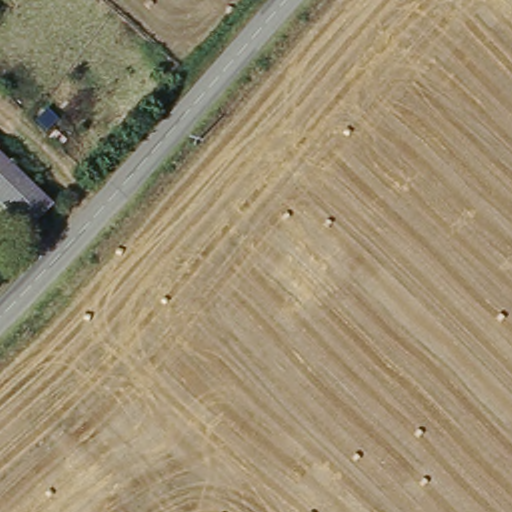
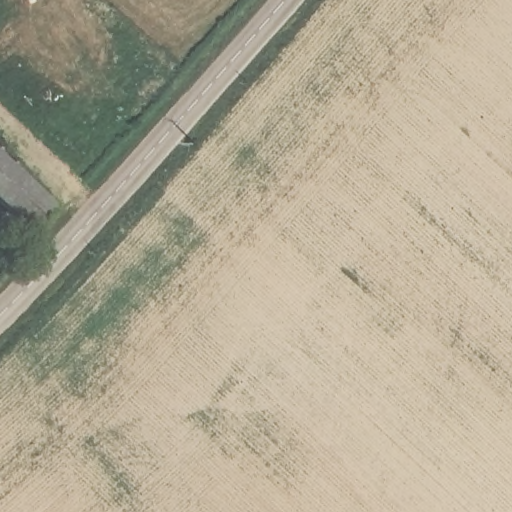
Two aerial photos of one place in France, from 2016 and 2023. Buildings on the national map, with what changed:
unchanged [(0,158),(60,215),(31,243),(0,212),(0,158)]

